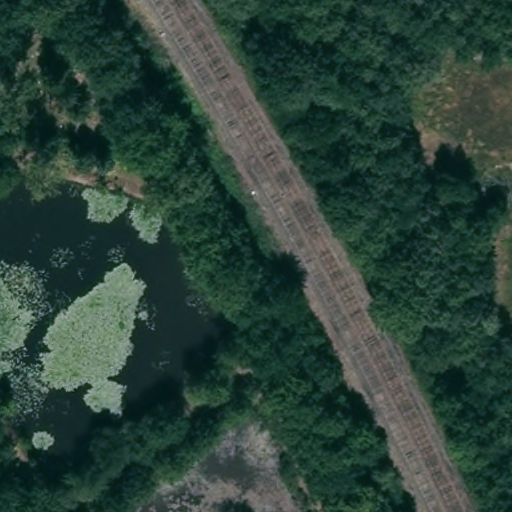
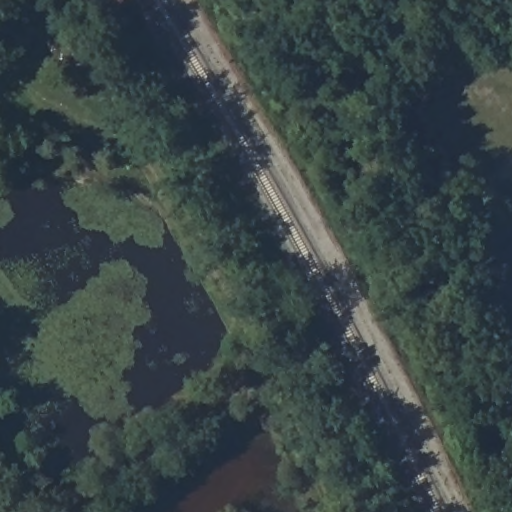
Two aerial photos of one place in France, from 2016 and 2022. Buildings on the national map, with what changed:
unchanged [(78,54),(93,80),(78,91),(62,65),(78,54)]

